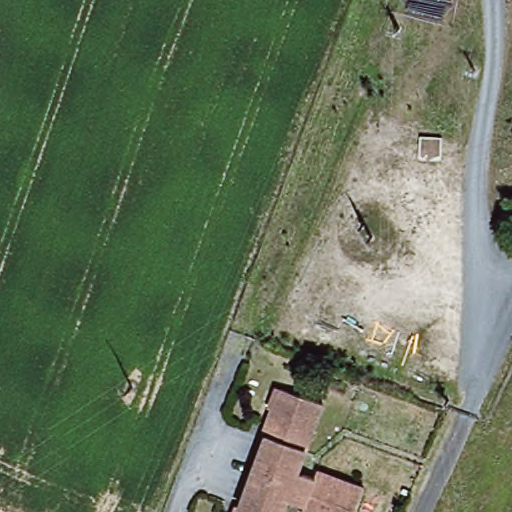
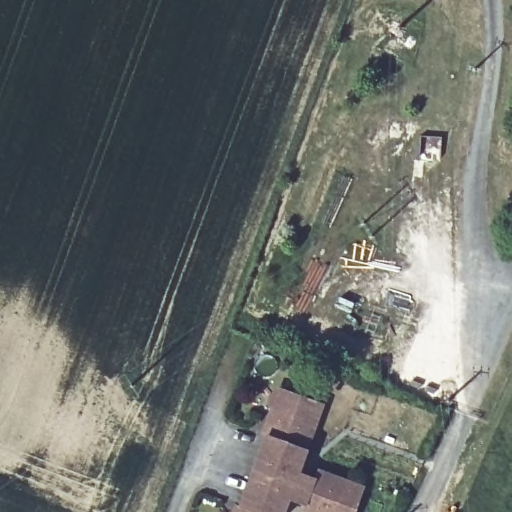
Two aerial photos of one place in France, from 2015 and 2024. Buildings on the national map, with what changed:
unchanged [(318,467),(363,488),(355,512),(304,512),(304,511),(287,505),(285,512),(235,512),(236,509),(241,511),(268,438),(262,436),(279,389),(320,405),(299,471),(313,476),(318,467)]

